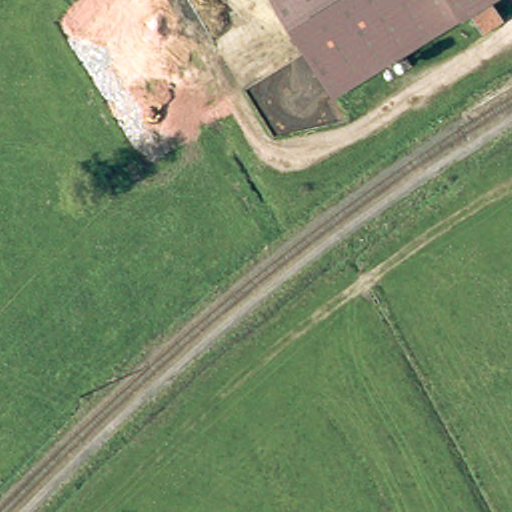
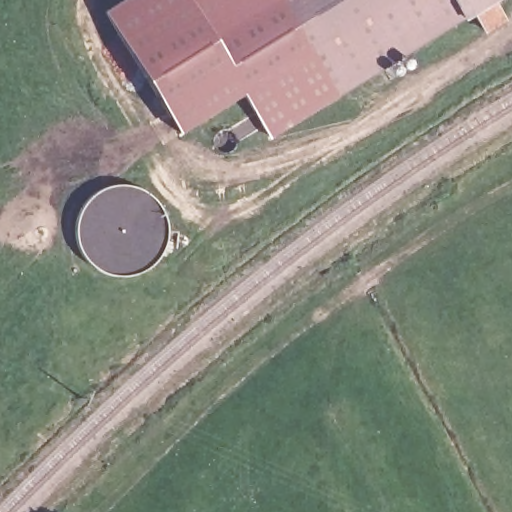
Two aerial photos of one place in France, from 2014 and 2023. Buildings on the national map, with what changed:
new [(177,133),(102,9),(118,0),(278,0),(342,92),(268,137),(242,92),(177,133)]
unchanged [(493,23),(479,5),(345,97),(278,0),(505,0),(512,9),(493,23)]

